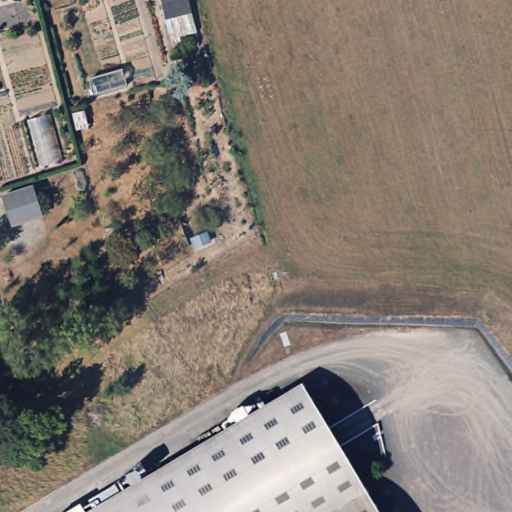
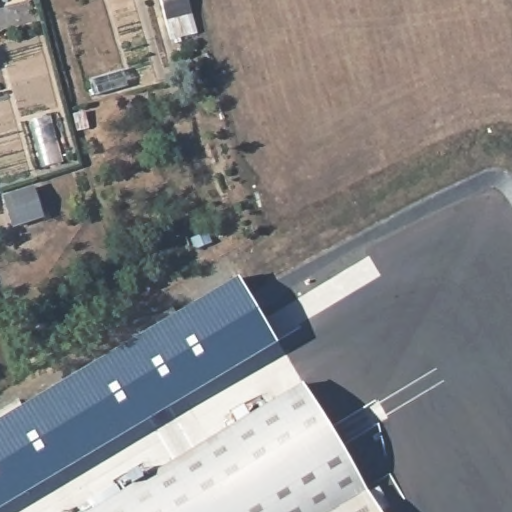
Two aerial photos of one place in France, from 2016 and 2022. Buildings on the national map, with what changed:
unchanged [(193,15),(166,22),(161,0),(189,0),(193,15)]
unchanged [(2,195),(33,185),(45,217),(14,226),(2,195)]
new [(277,343),(0,507),(0,417),(237,276),(277,343)]
unchanged [(100,512),(236,430),(305,388),(317,407),(381,512),(100,512)]

